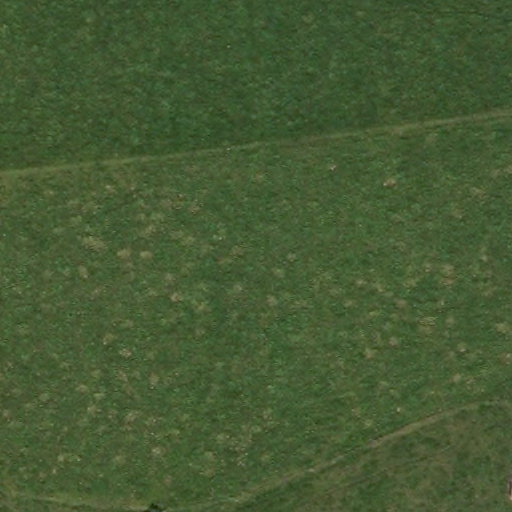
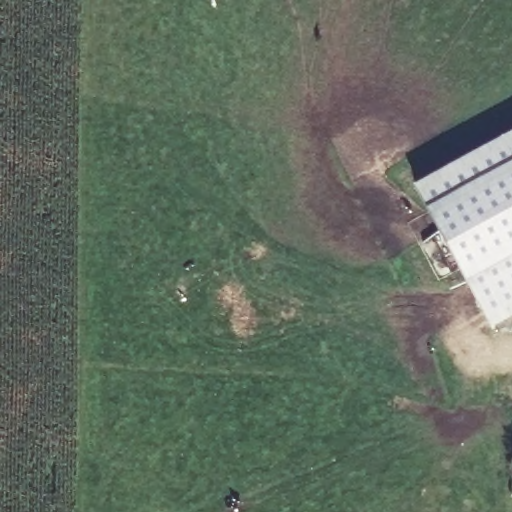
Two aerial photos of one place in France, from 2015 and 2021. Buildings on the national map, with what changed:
new [(466,282),(427,210),(415,186),(512,133),(512,318),(492,328),(466,282)]

